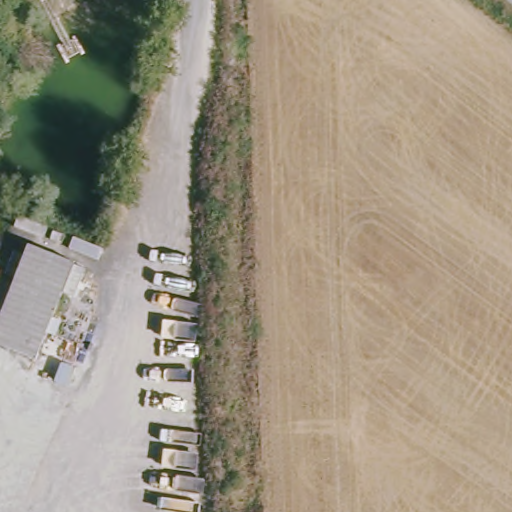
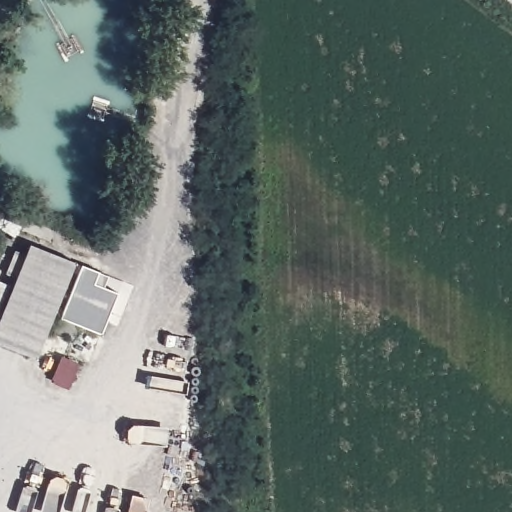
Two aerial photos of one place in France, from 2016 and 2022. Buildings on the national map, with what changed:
unchanged [(0,297),(22,242),(65,260),(38,328),(27,355),(0,345),(0,297)]
new [(82,266),(100,272),(108,276),(105,288),(117,293),(102,335),(62,319),(82,266)]

